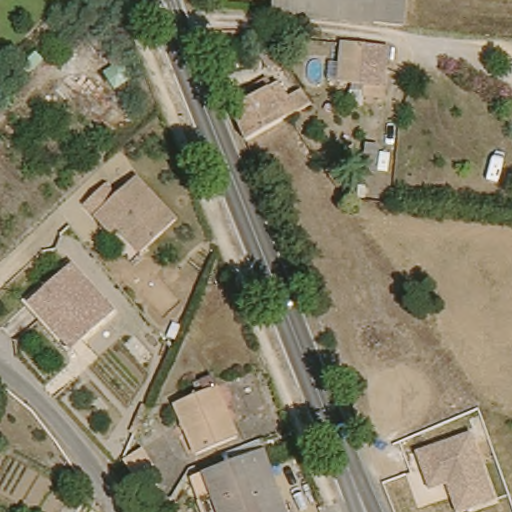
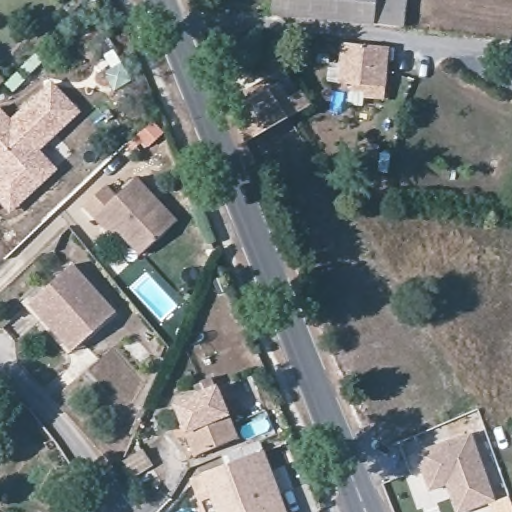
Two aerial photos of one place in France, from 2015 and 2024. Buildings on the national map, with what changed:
unchanged [(403,31),(272,17),(275,0),(406,0),(403,31)]
unchanged [(390,56),(387,114),(375,112),(375,94),(338,92),(328,92),(329,70),(340,71),(343,52),(390,56)]
new [(0,108),(10,120),(51,82),(80,112),(39,151),(57,170),(10,214),(0,203),(0,108)]
unchanged [(236,119),(255,110),(249,100),(262,92),(270,102),(288,129),(248,152),(236,119)]
unchanged [(285,95),(295,106),(309,97),(320,111),(292,126),(288,129),(272,101),(275,100),(285,95)]
unchanged [(378,182),(365,182),(367,152),(381,153),(378,182)]
unchanged [(92,217),(82,205),(103,185),(113,196),(133,177),(174,221),(138,254),(115,229),(109,235),(92,217)]
unchanged [(73,262),(115,311),(67,351),(25,302),(31,297),(73,262)]
unchanged [(175,408),(217,392),(236,442),(197,457),(175,408)]
unchanged [(464,512),(452,512),(442,485),(428,490),(413,452),(472,430),(498,501),(464,512)]
unchanged [(122,464),(139,452),(150,465),(130,478),(122,464)]
unchanged [(200,477),(267,452),(291,512),(213,512),(198,478),(200,477)]

